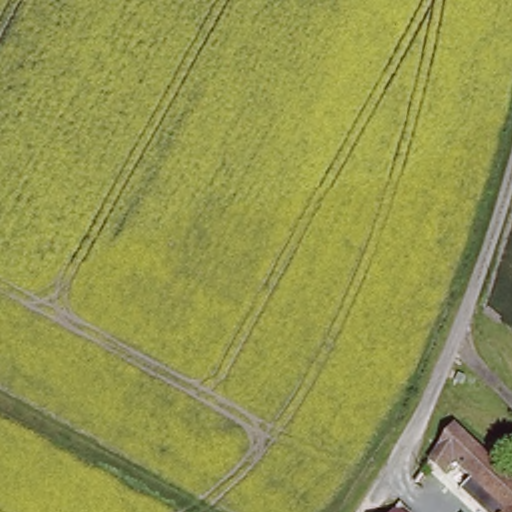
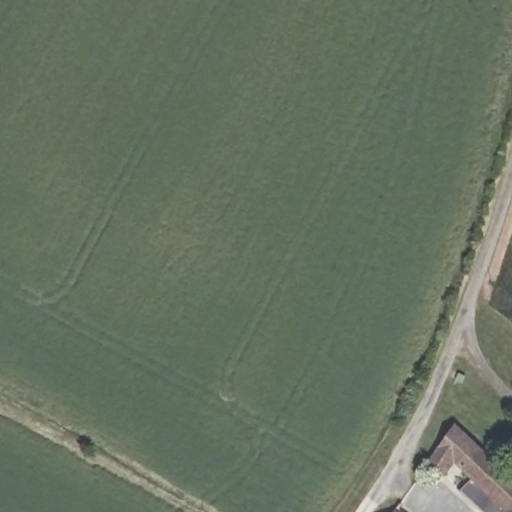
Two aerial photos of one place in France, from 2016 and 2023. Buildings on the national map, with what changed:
unchanged [(467,485),(452,472),(450,475),(437,462),(462,422),(512,472),(512,512),(507,512),(474,477),(467,485)]
unchanged [(415,512),(401,512),(407,505),(415,512)]

